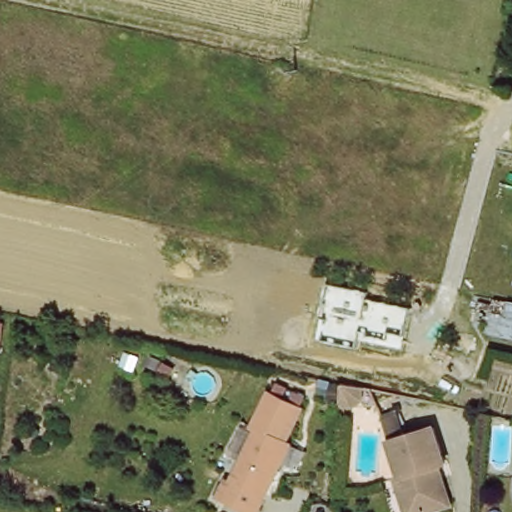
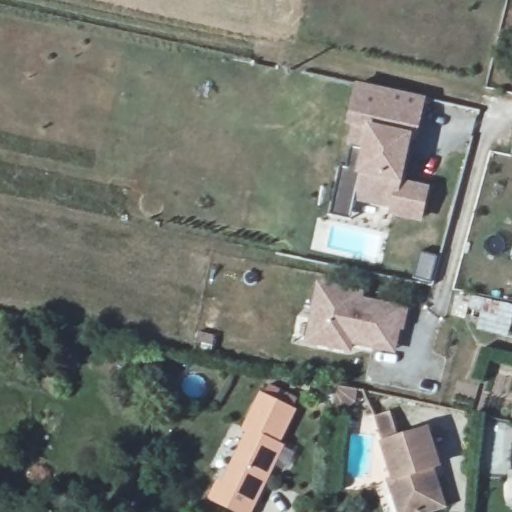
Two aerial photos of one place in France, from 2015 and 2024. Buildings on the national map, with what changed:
new [(346,172),(346,171),(356,125),(371,128),(379,89),(424,98),(416,138),(410,137),(400,183),(428,189),(421,219),(393,213),(394,206),(356,198),(335,194),(340,170),(346,172)]
new [(352,342),(351,350),(315,342),(310,341),(314,320),(321,285),(361,294),(360,300),(403,309),(397,338),(395,350),(352,342)]
unchanged [(490,338),(494,312),(512,315),(512,342),(490,338)]
unchanged [(345,409),(348,387),(363,389),(369,390),(369,391),(366,403),(358,410),(345,409)]
unchanged [(267,483),(253,512),(239,512),(218,502),(235,469),(230,466),(264,396),(301,414),(293,430),(289,428),(263,481),(267,483)]
unchanged [(392,481),(397,479),(386,445),(378,421),(394,416),(401,439),(429,430),(441,466),(428,470),(431,479),(437,477),(446,507),(431,512),(413,512),(407,494),(397,497),(392,481)]

